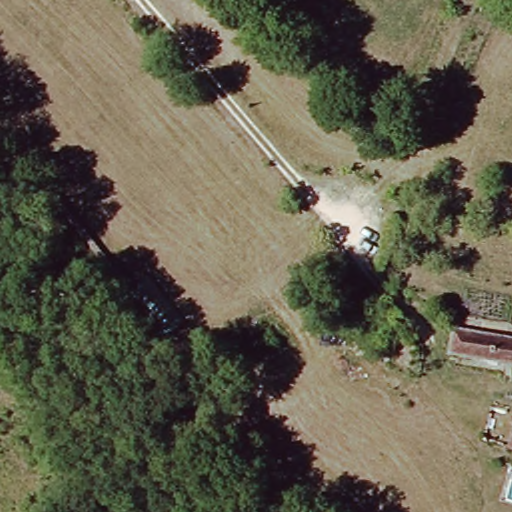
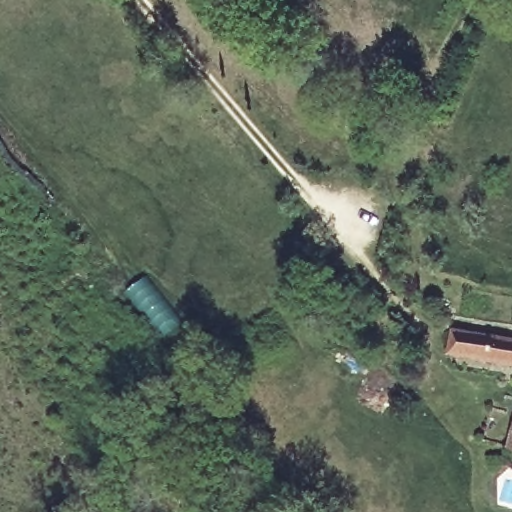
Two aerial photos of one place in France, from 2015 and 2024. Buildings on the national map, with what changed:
unchanged [(447,356),(450,332),(512,341),(512,367),(447,356)]
unchanged [(506,448),(512,430),(512,449),(506,448)]

